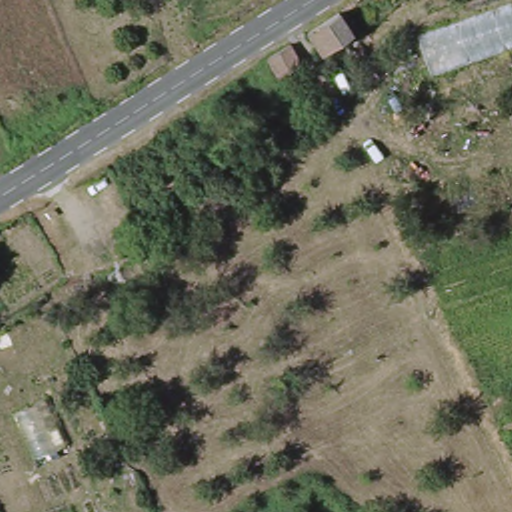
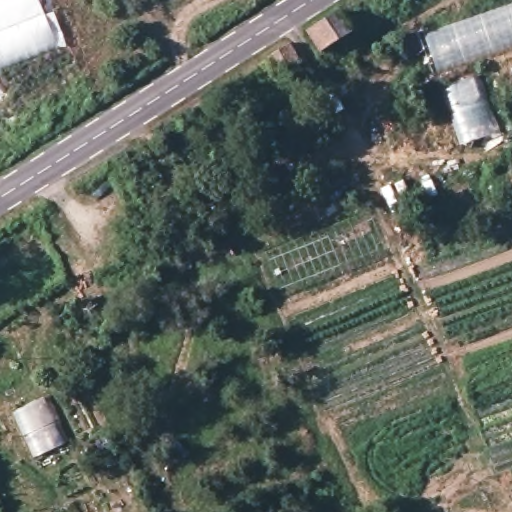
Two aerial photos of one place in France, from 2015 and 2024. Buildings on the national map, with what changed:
new [(41,6),(61,46),(0,69),(0,0),(39,0),(41,6)]
unchanged [(512,4),(512,42),(429,70),(419,35),(512,4)]
unchanged [(314,30),(327,20),(341,11),(355,35),(326,54),(314,30)]
unchanged [(310,72),(288,86),(278,65),(299,51),(310,72)]
new [(500,132),(456,144),(438,88),(479,75),(500,132)]
unchanged [(59,393),(81,444),(43,460),(19,410),(59,393)]

